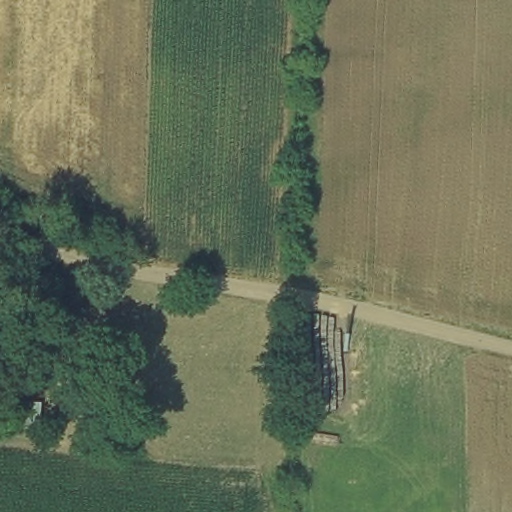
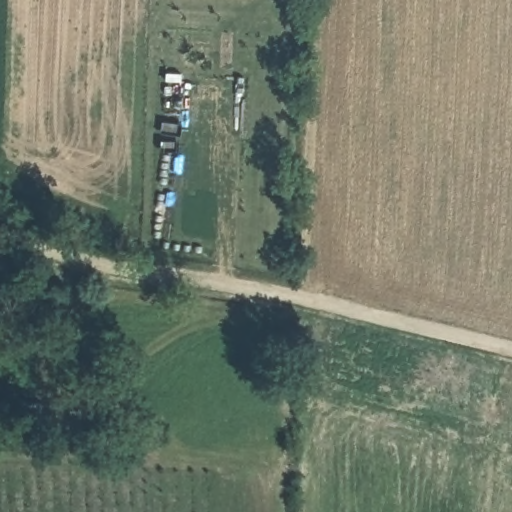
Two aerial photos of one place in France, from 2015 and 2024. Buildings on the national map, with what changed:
unchanged [(140,392),(125,429),(76,421),(93,388),(140,392)]

